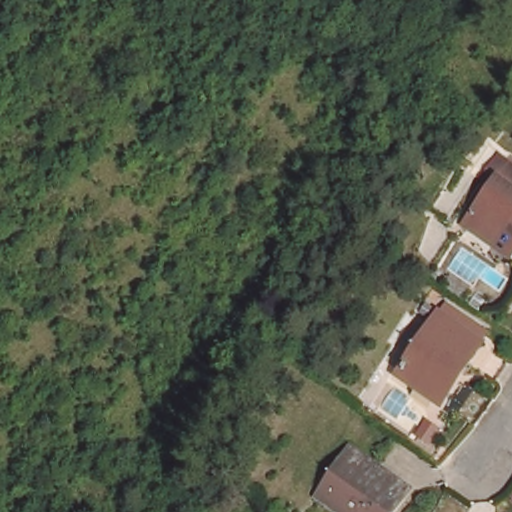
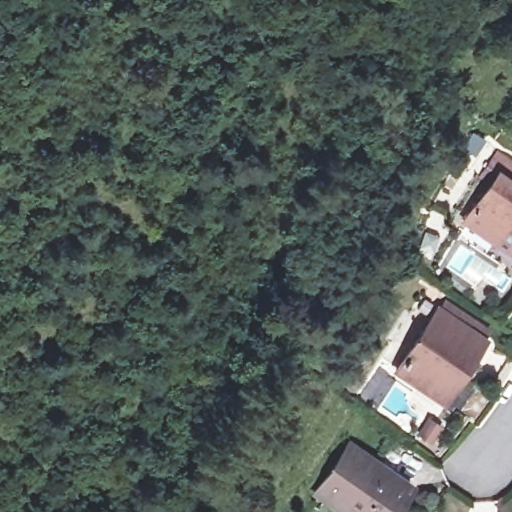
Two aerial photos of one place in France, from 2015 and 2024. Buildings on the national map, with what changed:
unchanged [(497,253),(468,232),(494,195),(484,187),(500,165),(512,173),(512,263),(497,253)]
unchanged [(416,386),(395,370),(437,310),(440,311),(445,303),(483,330),(477,339),(480,341),(465,363),(460,360),(440,389),(433,397),(416,386)]
unchanged [(447,406),(465,379),(494,398),(488,406),(474,423),(447,406)]
unchanged [(315,492),(347,444),(373,461),(370,466),(381,473),(385,468),(409,485),(392,512),(345,512),(333,505),(315,492)]

